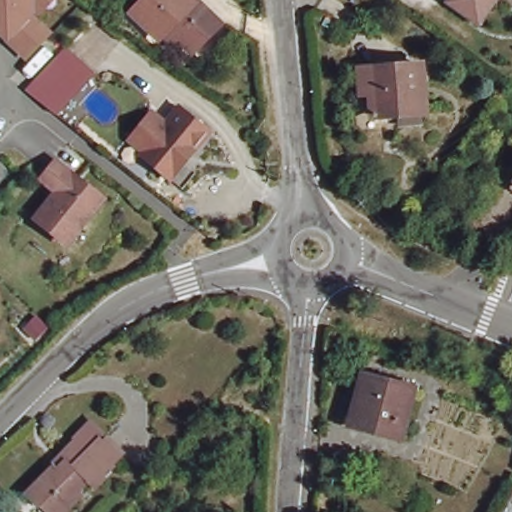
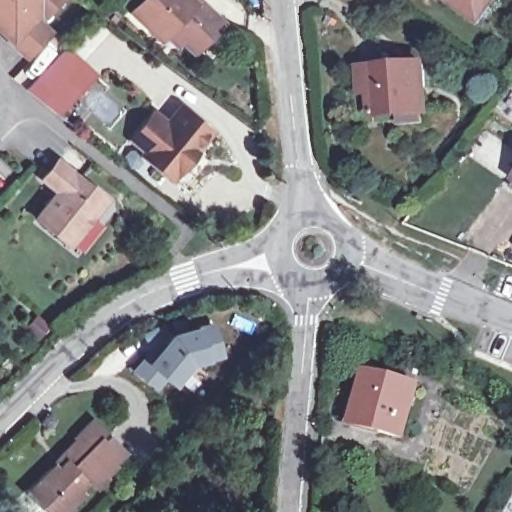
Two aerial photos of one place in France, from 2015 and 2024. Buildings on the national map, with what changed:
unchanged [(38,10),(33,6),(28,11),(53,35),(33,57),(12,37),(14,35),(5,26),(2,29),(0,26),(0,0),(48,0),(38,10)]
unchanged [(163,37),(140,15),(154,0),(187,0),(193,6),(198,0),(223,24),(196,54),(186,44),(179,51),(163,37)]
unchanged [(480,1),(481,0),(495,0),(479,23),(448,1),(449,0),(478,0),(480,1)]
unchanged [(480,1),(478,0),(481,0),(480,1)]
unchanged [(57,116),(31,95),(68,56),(72,52),(99,79),(60,118),(57,116)]
unchanged [(425,116),(395,119),(395,115),(373,116),(372,96),(362,97),(360,73),(370,72),(422,68),(425,116)]
unchanged [(218,135),(172,189),(138,160),(117,141),(149,106),(165,129),(179,110),(218,135)]
unchanged [(58,235),(37,218),(58,190),(42,179),(47,172),(57,160),(103,199),(75,234),(67,243),(58,235)]
new [(165,345),(173,335),(213,325),(221,355),(190,362),(173,382),(164,375),(155,386),(135,370),(160,341),(165,345)]
unchanged [(380,426),(351,419),(363,372),(415,386),(401,437),(378,431),(380,426)]
unchanged [(93,487),(87,480),(79,488),(83,492),(64,512),(50,512),(42,503),(40,505),(26,490),(55,462),(58,466),(62,461),(57,457),(75,438),(74,436),(90,420),(103,432),(100,435),(103,438),(107,435),(123,452),(112,462),(115,463),(104,473),(105,475),(93,487)]

